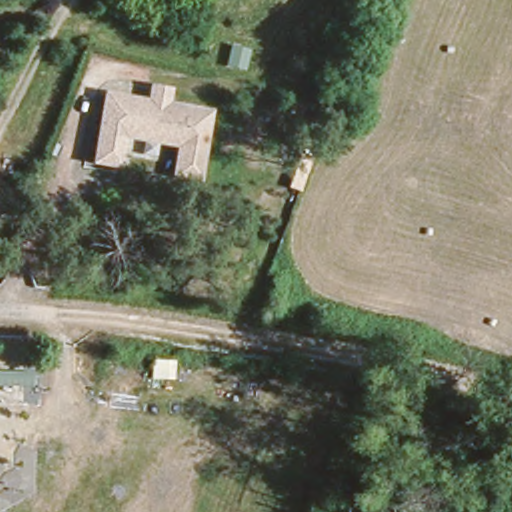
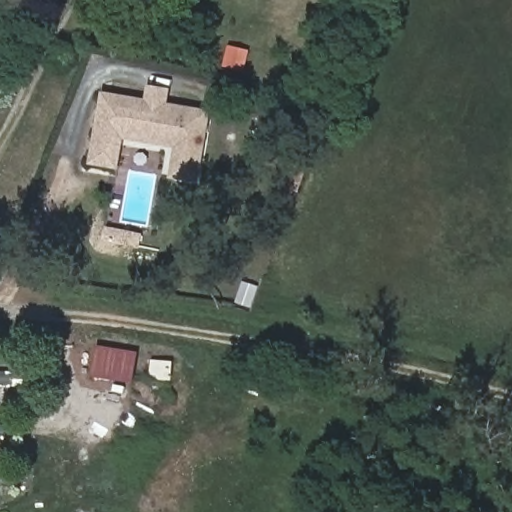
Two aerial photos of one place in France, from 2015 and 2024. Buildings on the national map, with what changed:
unchanged [(103,95),(130,99),(145,100),(147,86),(147,85),(148,86),(166,89),(165,103),(207,109),(197,176),(174,172),(178,142),(121,135),(117,165),(94,161),(99,120),(103,95)]
new [(139,351),(135,384),(93,378),(96,346),(139,351)]

